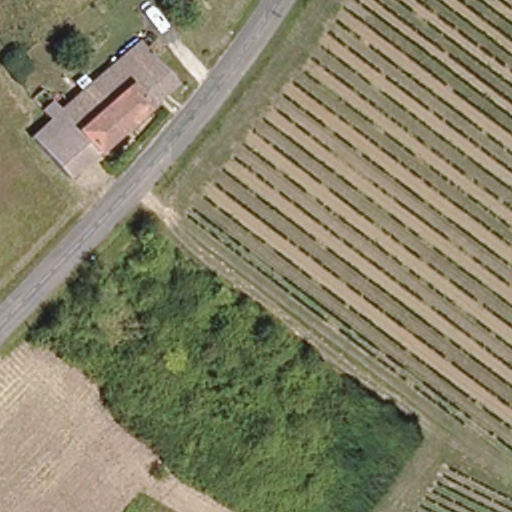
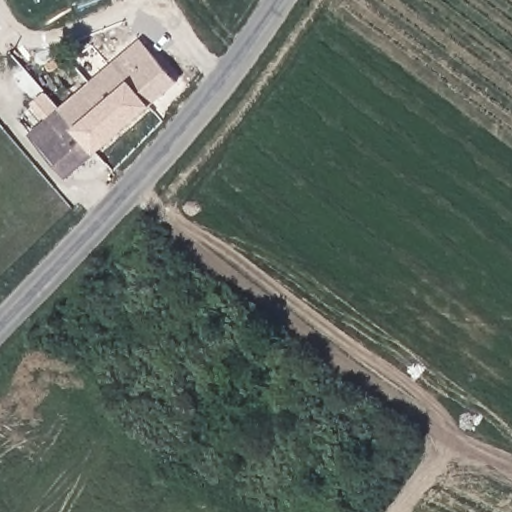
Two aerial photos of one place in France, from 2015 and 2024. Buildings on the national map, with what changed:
unchanged [(27,140),(53,114),(30,89),(45,74),(69,98),(136,37),(176,79),(68,184),(27,140)]

